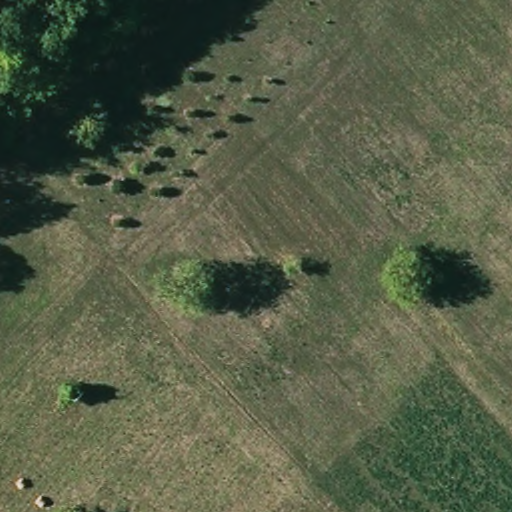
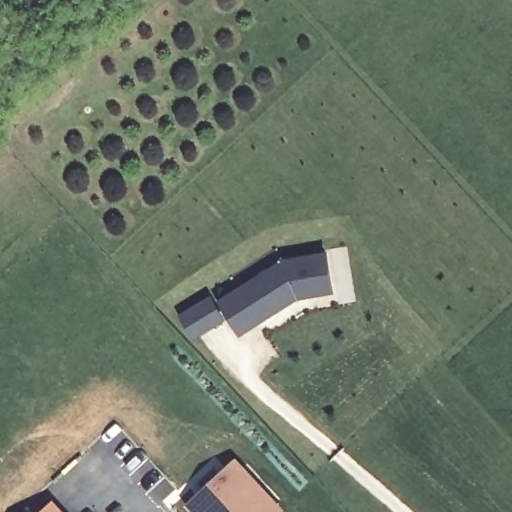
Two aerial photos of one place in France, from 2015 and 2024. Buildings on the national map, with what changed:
new [(281,260),(323,252),(330,290),(295,296),(255,321),(239,332),(219,300),(235,290),(281,260)]
new [(236,456),(286,510),(284,512),(195,512),(185,502),(236,456)]
new [(53,498),(66,512),(38,512),(53,498)]

